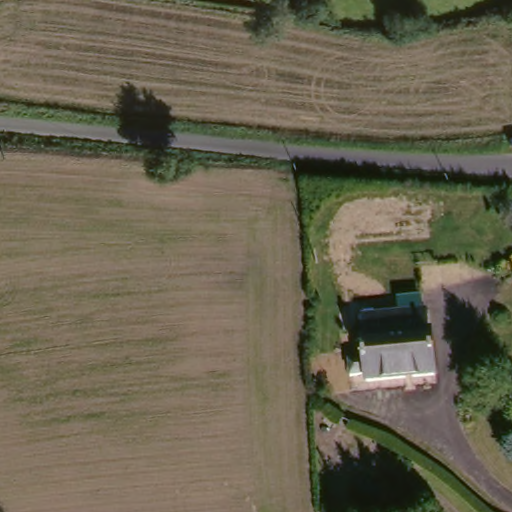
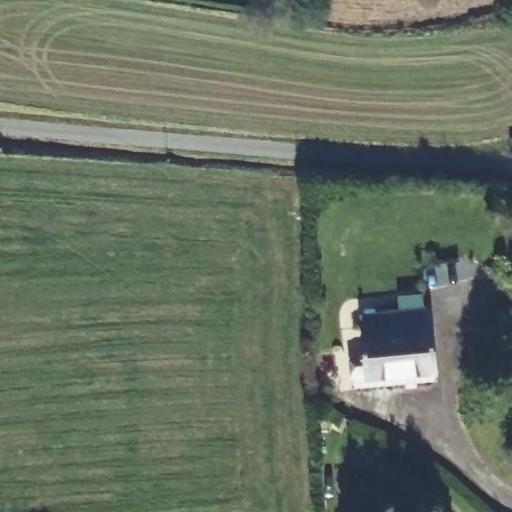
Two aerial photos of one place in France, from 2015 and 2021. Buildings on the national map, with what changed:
unchanged [(431,382),(355,386),(351,318),(427,314),(431,382)]

